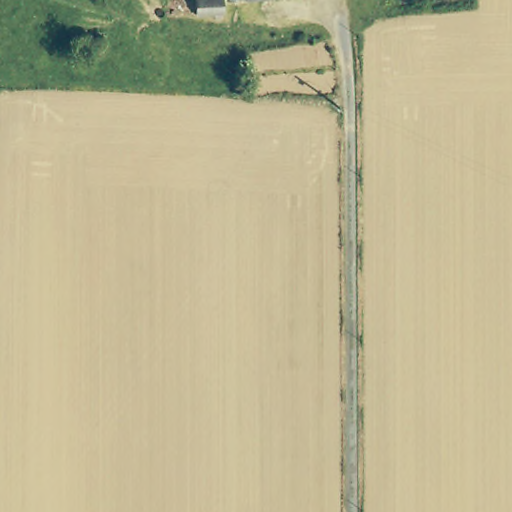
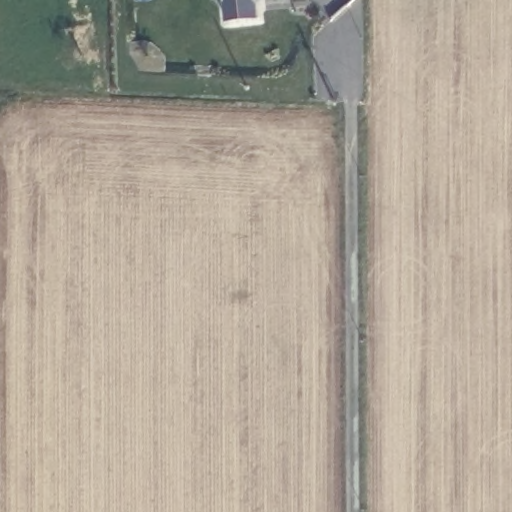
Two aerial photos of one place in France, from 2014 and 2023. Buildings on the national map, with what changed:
demolished [(202,18),(201,0),(230,0),(230,16),(202,18)]
new [(257,19),(223,22),(222,0),(259,0),(256,4),(257,19)]

